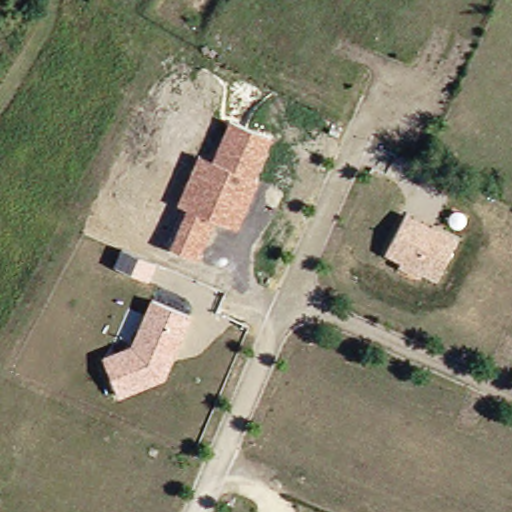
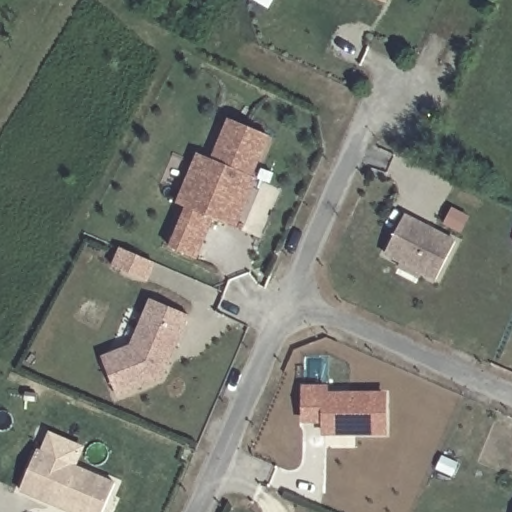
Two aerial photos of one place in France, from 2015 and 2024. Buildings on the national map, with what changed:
unchanged [(228,119),(272,138),(239,229),(215,219),(198,263),(169,250),(186,208),(175,204),(197,152),(211,159),(228,119)]
unchanged [(455,242),(435,281),(386,255),(406,215),(455,242)]
unchanged [(129,346),(150,297),(191,317),(164,378),(118,397),(103,356),(129,346)]
new [(388,389),(388,436),(322,437),(322,425),(302,425),(301,390),(388,389)]
new [(21,489),(39,449),(116,482),(103,512),(75,512),(65,507),(54,502),(21,489)]

